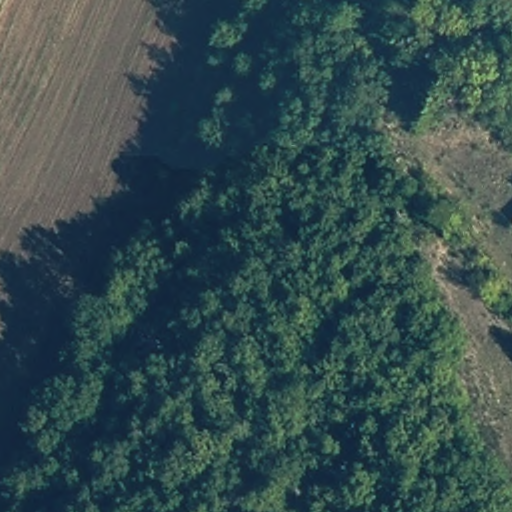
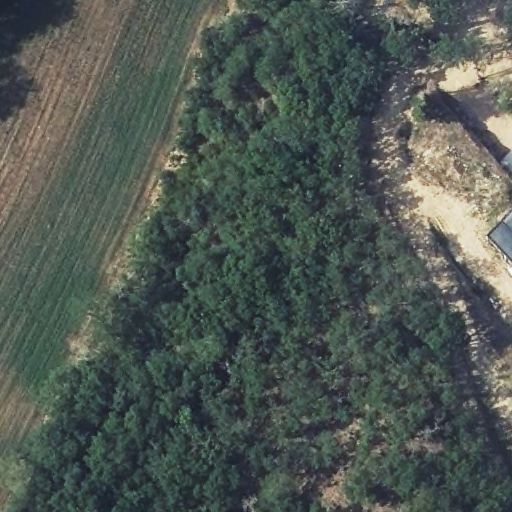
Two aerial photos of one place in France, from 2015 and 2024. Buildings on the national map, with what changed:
unchanged [(512,219),(512,222),(510,220),(512,219)]

